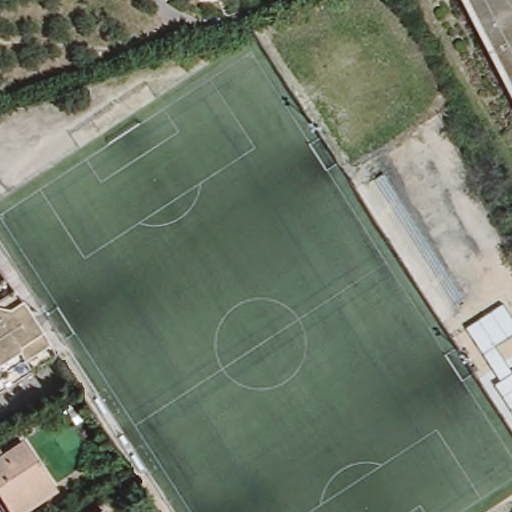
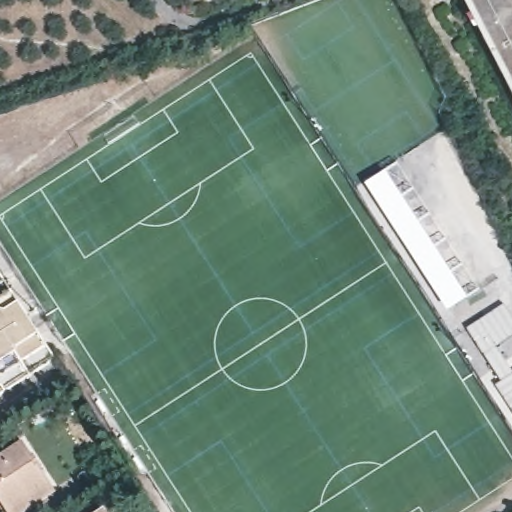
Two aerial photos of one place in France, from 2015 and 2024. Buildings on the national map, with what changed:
unchanged [(480,0),(512,0),(512,62),(480,0)]
unchanged [(463,296),(454,304),(376,181),(385,175),(463,296)]
unchanged [(11,275),(23,295),(0,310),(0,283),(11,275)]
unchanged [(0,394),(0,310),(23,295),(57,347),(62,354),(0,394)]
unchanged [(503,381),(469,329),(504,306),(512,318),(512,338),(497,347),(512,372),(512,409),(497,385),(503,381)]
unchanged [(25,512),(16,512),(0,487),(0,449),(4,446),(8,452),(29,438),(62,488),(25,512)]

